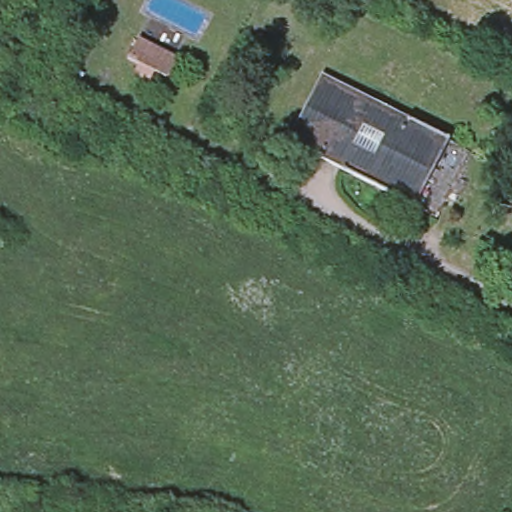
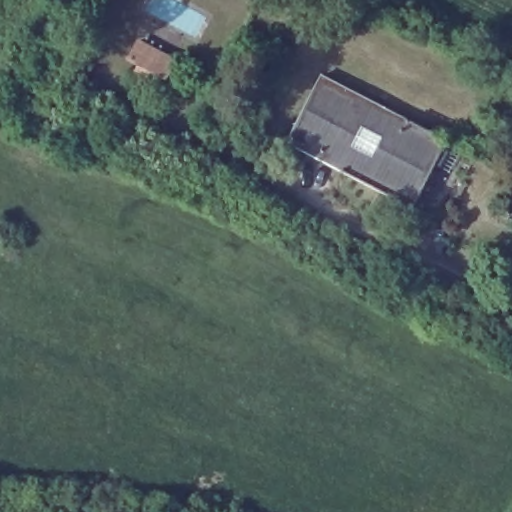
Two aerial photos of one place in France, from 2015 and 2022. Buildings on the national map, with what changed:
unchanged [(341,172),(288,144),(322,77),(376,104),(341,172)]
unchanged [(376,104),(449,141),(412,209),(341,172),(376,104)]

